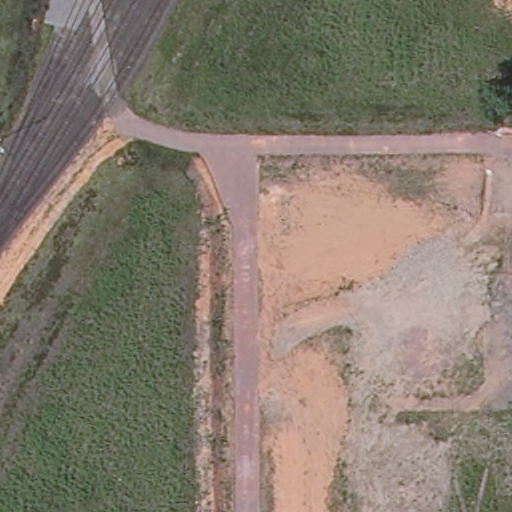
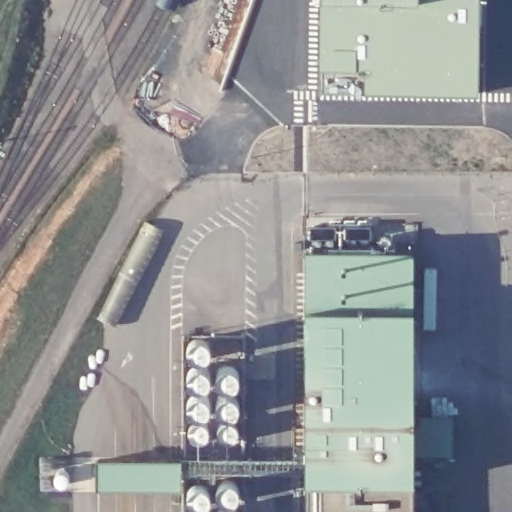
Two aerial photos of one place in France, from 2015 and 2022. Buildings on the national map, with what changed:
new [(319,94),(319,0),(478,0),(478,100),(319,94)]
new [(306,312),(306,251),(306,225),(374,224),(376,251),(414,251),(414,311),(414,414),(454,416),(454,455),(414,455),(414,483),(414,512),(306,512),(306,485),(306,312)]
new [(95,461),(180,459),(218,459),(218,415),(191,415),(191,365),(238,367),(239,415),(239,490),(239,512),(188,512),(188,489),(96,489),(95,461)]

